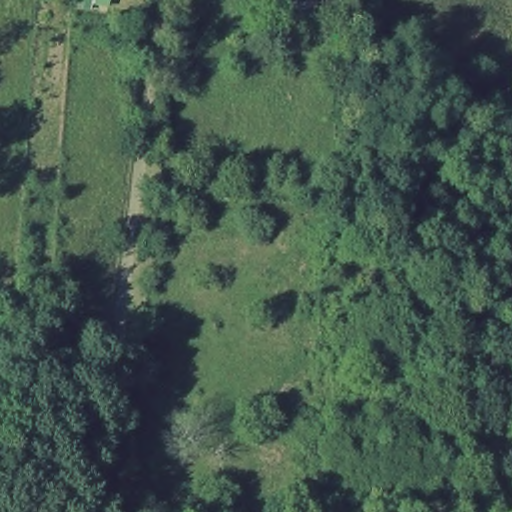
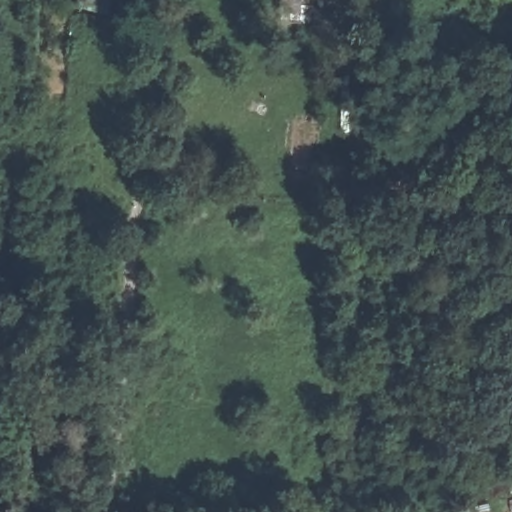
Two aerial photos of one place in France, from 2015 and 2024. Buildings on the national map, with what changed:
unchanged [(320,18),(280,18),(281,0),(320,0),(320,18)]

